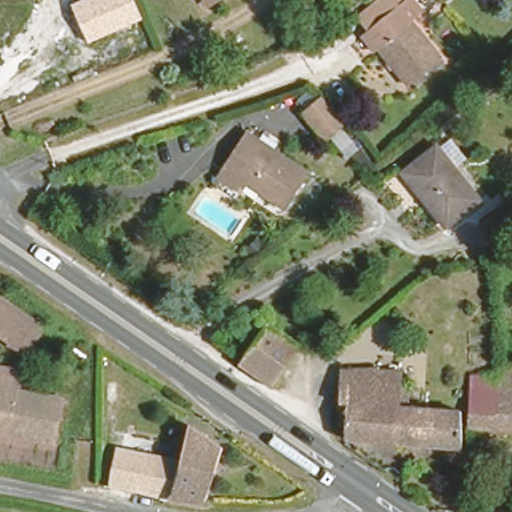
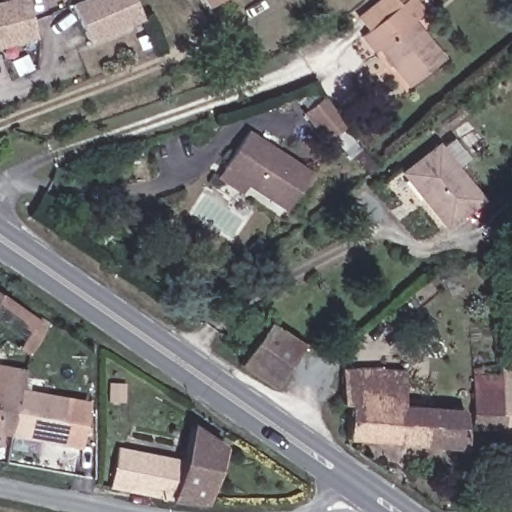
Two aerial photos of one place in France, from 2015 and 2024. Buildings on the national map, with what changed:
new [(0,47),(0,1),(6,0),(26,0),(37,36),(0,47)]
unchanged [(72,3),(79,0),(135,0),(144,19),(89,43),(72,3)]
unchanged [(209,0),(213,0),(210,2),(209,0)]
unchanged [(374,40),(371,42),(357,23),(387,0),(418,0),(420,3),(408,13),(436,50),(402,77),(374,40)]
unchanged [(345,123),(325,139),(301,111),(321,94),(345,123)]
unchanged [(214,173),(219,165),(244,127),(314,171),(290,207),(245,180),(240,189),(214,173)]
unchanged [(481,197),(448,223),(406,168),(440,142),(481,197)]
unchanged [(479,218),(477,216),(503,197),(508,204),(512,201),(512,238),(498,243),(479,218)]
unchanged [(0,332),(0,293),(40,318),(25,347),(0,332)]
unchanged [(272,384),(242,363),(260,334),(269,320),(289,334),(299,340),(272,384)]
unchanged [(28,366),(23,385),(66,395),(57,438),(0,425),(0,361),(16,363),(28,366)]
unchanged [(461,449),(341,436),(325,420),(332,395),(338,366),(401,365),(404,401),(471,403),(473,372),(512,369),(512,426),(465,424),(461,449)]
unchanged [(163,492),(108,483),(114,441),(178,452),(188,414),(219,434),(207,496),(163,492)]

